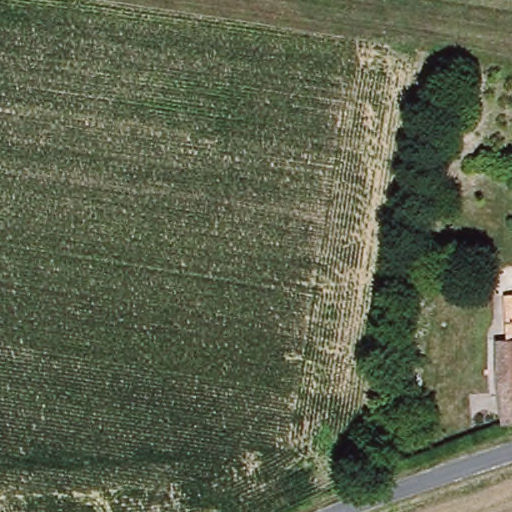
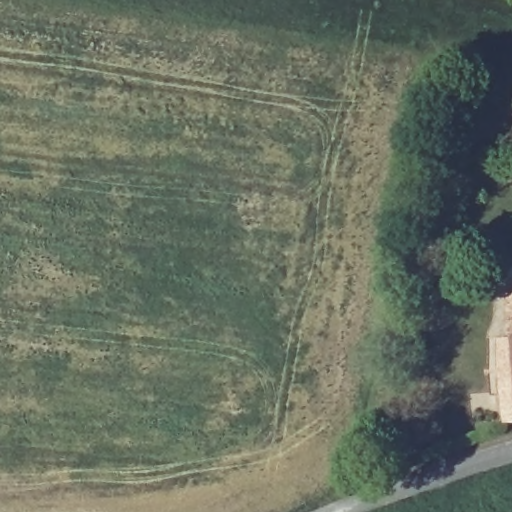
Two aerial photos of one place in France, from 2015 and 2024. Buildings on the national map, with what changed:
unchanged [(503,425),(498,338),(510,337),(508,292),(512,291),(512,425),(503,425)]

